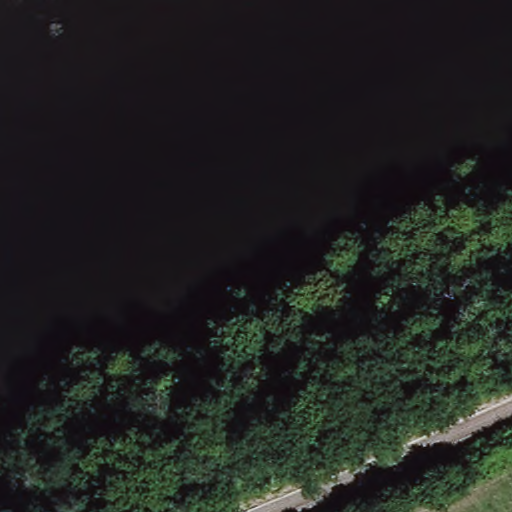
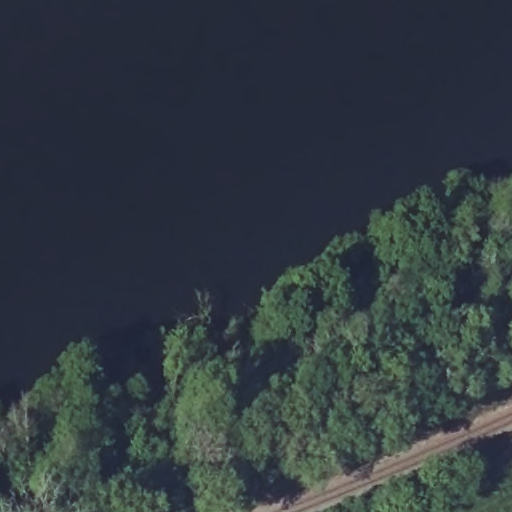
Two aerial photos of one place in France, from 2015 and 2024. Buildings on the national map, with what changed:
[]

